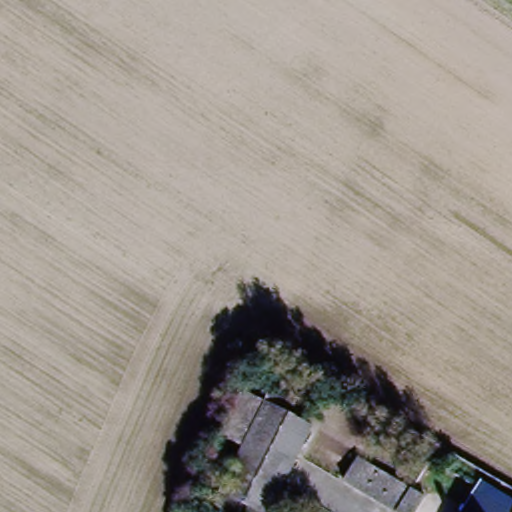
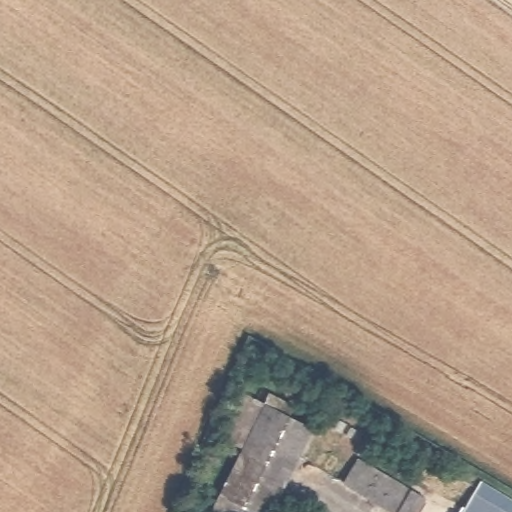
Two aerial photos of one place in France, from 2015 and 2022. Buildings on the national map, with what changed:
unchanged [(267,393),(288,403),(282,415),(308,427),(268,512),(209,512),(240,448),(259,407),(267,393)]
unchanged [(236,396),(259,407),(240,448),(217,436),(236,396)]
unchanged [(416,512),(386,512),(344,488),(356,465),(421,502),(416,512)]
unchanged [(474,484),(512,506),(512,512),(459,512),(474,484)]

